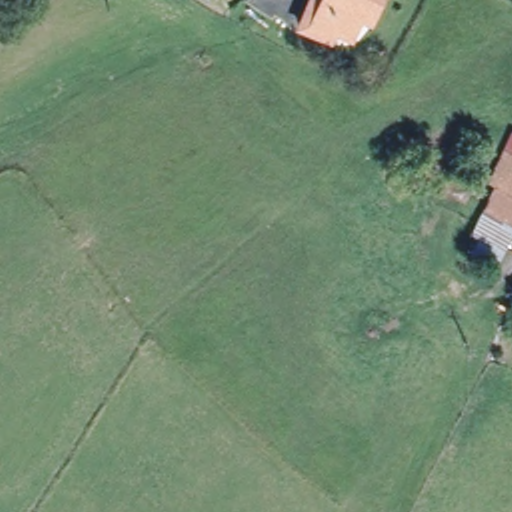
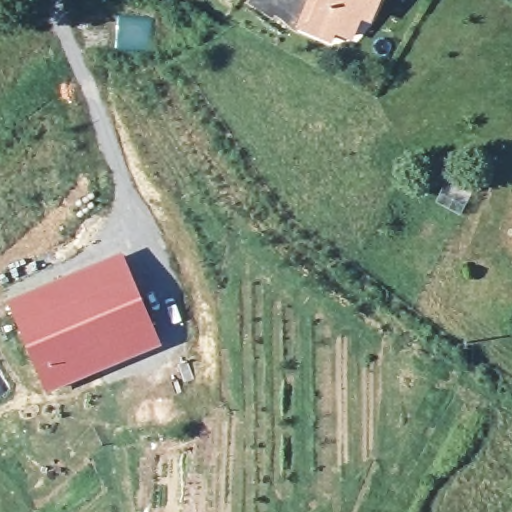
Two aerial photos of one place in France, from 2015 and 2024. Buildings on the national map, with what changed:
unchanged [(367,7),(364,5),(354,31),(336,25),(332,35),(301,24),(310,0),(370,0),(367,7)]
demolished [(490,183),(483,180),(505,122),(512,125),(512,231),(492,266),(466,252),(475,235),(467,231),(490,183)]
new [(126,250),(161,345),(50,383),(15,296),(126,250)]

